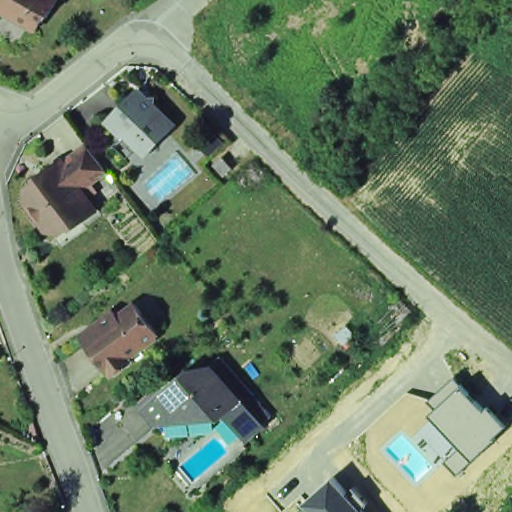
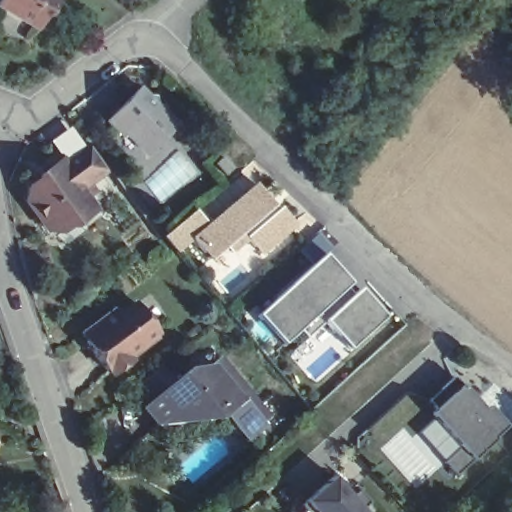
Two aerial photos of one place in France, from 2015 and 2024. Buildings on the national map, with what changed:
unchanged [(0,22),(0,0),(52,0),(39,25),(36,24),(29,36),(0,22)]
unchanged [(136,102),(143,102),(144,109),(159,125),(160,125),(161,135),(153,141),(144,141),(137,149),(129,150),(129,149),(115,136),(108,136),(96,125),(128,93),(136,102)]
unchanged [(224,139),(214,149),(208,142),(218,132),(224,139)]
unchanged [(70,228),(63,224),(49,234),(36,230),(34,228),(18,208),(21,193),(31,185),(32,186),(37,183),(34,179),(53,165),(54,168),(79,150),(98,175),(73,196),(87,216),(70,228)]
unchanged [(221,176),(212,165),(219,158),(229,169),(221,176)]
new [(198,207),(208,219),(265,174),(308,222),(261,260),(245,244),(236,252),(230,244),(212,261),(196,241),(179,255),(164,236),(198,207)]
new [(354,281),(348,289),(353,295),(363,287),(389,314),(353,350),(328,323),(311,338),(303,328),(289,341),(261,314),(329,252),(354,281)]
unchanged [(97,332),(93,327),(107,316),(111,321),(128,309),(149,336),(147,338),(149,341),(136,352),(133,349),(119,359),(124,366),(106,378),(102,373),(99,374),(78,346),(97,332)]
unchanged [(247,396),(264,415),(269,420),(259,428),(244,442),(239,437),(223,417),(216,424),(207,413),(192,427),(178,410),(156,429),(141,414),(186,376),(206,371),(236,406),(237,405),(247,396)]
unchanged [(445,464),(461,449),(456,444),(442,455),(419,430),(433,417),(429,413),(435,408),(428,400),(454,378),(462,387),(484,411),(488,408),(506,428),(493,439),(494,441),(472,462),(457,475),(445,464)]
unchanged [(304,502),(333,479),(348,495),(354,489),(368,505),(363,510),(364,512),(305,512),(300,506),(304,502)]

